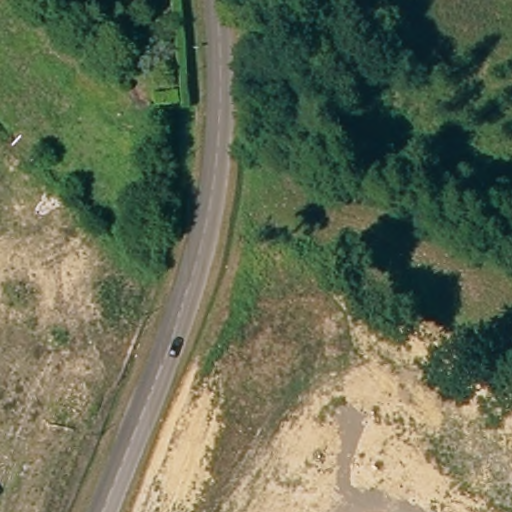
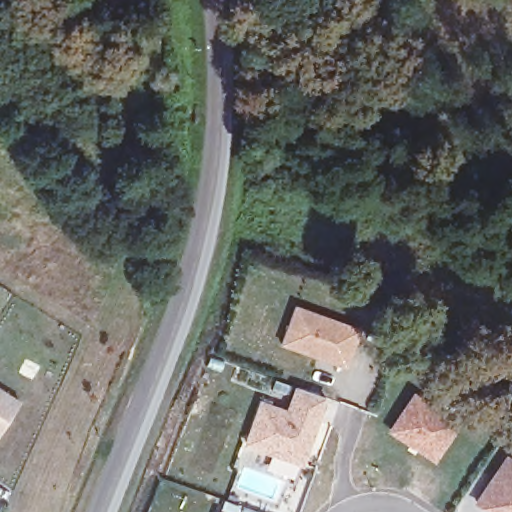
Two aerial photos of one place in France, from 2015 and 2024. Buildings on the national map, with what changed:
new [(297,320),(361,343),(347,381),(283,358),(297,320)]
new [(0,434),(0,390),(20,402),(0,434)]
new [(459,423),(435,461),(387,432),(413,391),(459,423)]
new [(262,416),(289,426),(298,400),(327,410),(303,476),(247,456),(262,416)]
new [(507,459),(512,463),(512,512),(491,512),(477,503),(507,459)]
new [(218,512),(218,511),(219,512),(218,512)]

